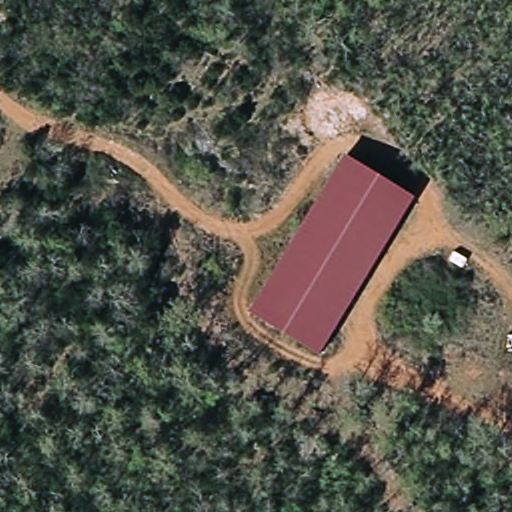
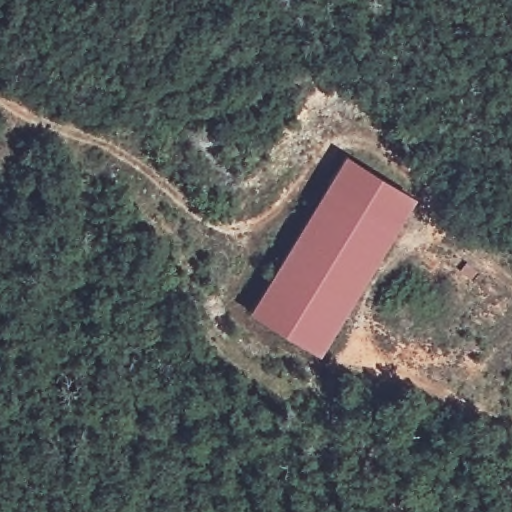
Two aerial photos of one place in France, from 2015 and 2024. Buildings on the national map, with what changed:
unchanged [(326,354),(318,351),(254,311),(309,219),(348,156),(418,200),(370,279),(326,354)]

